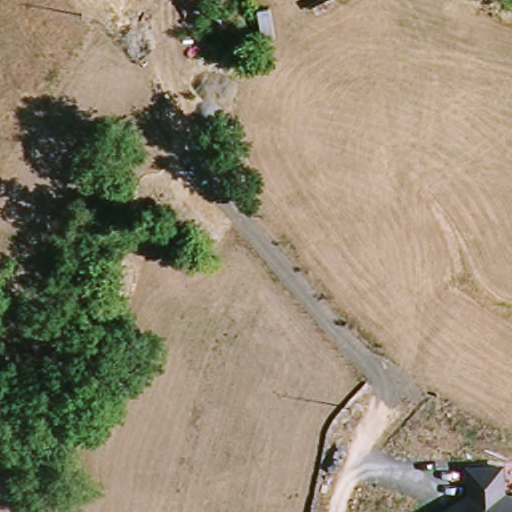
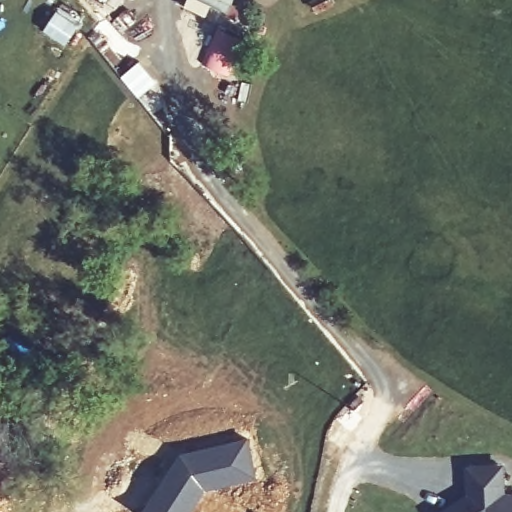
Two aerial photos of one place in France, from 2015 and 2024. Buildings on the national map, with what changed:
new [(178,451),(247,436),(256,477),(207,490),(191,512),(139,512),(178,451)]
unchanged [(468,462),(506,461),(507,488),(512,490),(512,512),(434,512),(469,491),(468,462)]

